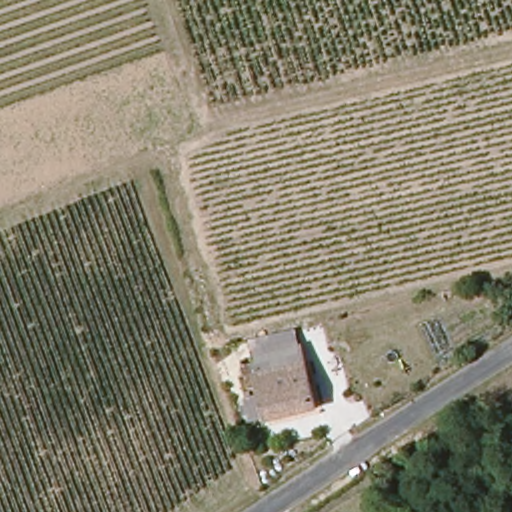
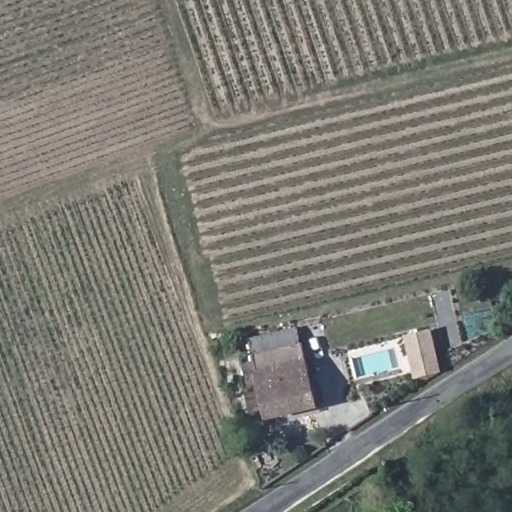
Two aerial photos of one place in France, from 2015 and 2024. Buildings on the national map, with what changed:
unchanged [(297,325),(297,334),(298,340),(303,344),(318,407),(268,422),(247,346),(235,349),(232,341),(297,325)]
new [(442,373),(415,380),(404,337),(432,330),(442,373)]

